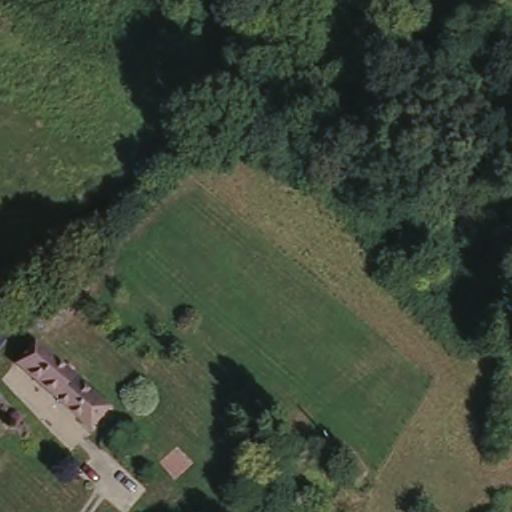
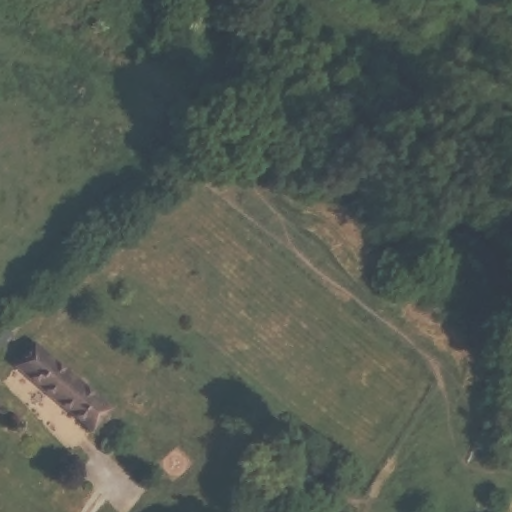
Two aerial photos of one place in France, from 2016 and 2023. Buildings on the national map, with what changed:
unchanged [(337,0),(373,0),(383,5),(372,25),(334,4),(337,0)]
unchanged [(101,412),(82,432),(9,363),(28,344),(101,412)]

